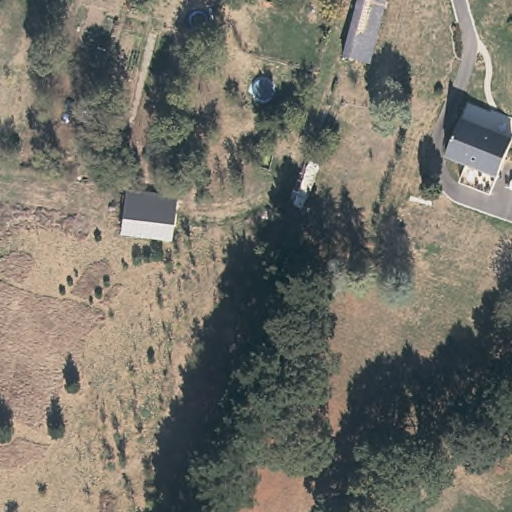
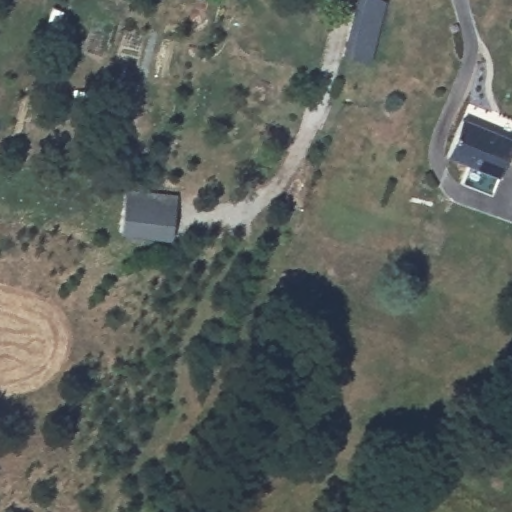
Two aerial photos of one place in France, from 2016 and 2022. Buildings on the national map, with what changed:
unchanged [(356,0),(387,0),(370,64),(342,55),(356,0)]
unchanged [(461,180),(467,162),(447,154),(461,115),(512,133),(497,172),(491,191),(461,180)]
unchanged [(122,235),(127,187),(177,190),(172,240),(122,235)]

